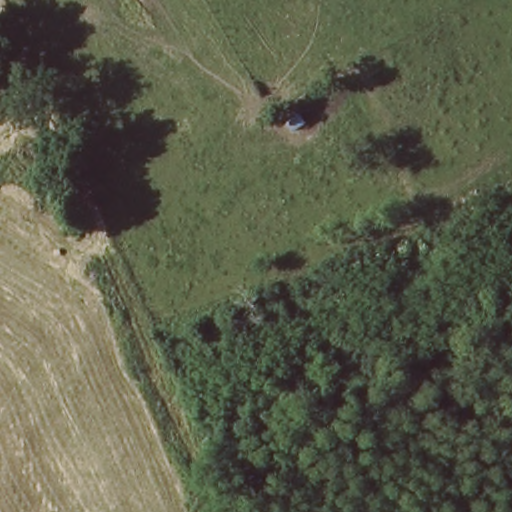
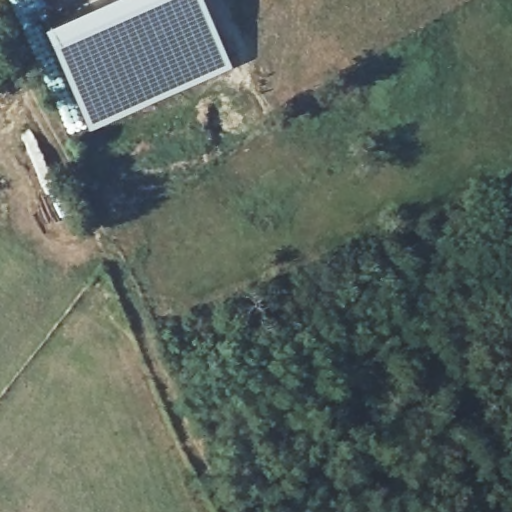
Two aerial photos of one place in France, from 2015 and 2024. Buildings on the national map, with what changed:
new [(202,0),(231,65),(136,107),(85,128),(39,24),(91,0),(202,0)]

